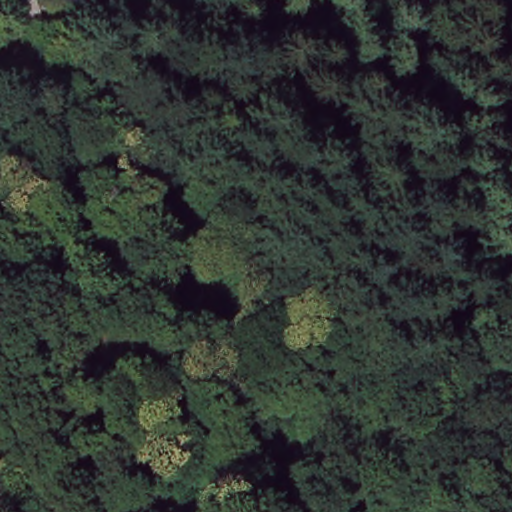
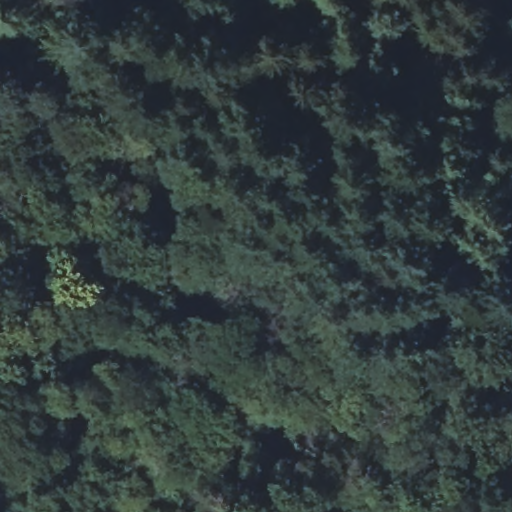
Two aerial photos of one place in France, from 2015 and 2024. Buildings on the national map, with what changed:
unchanged [(26,8),(38,26),(19,38),(14,42),(3,23),(4,22),(26,8)]

